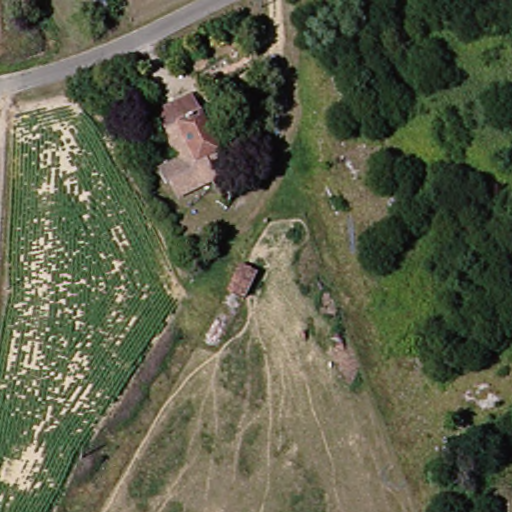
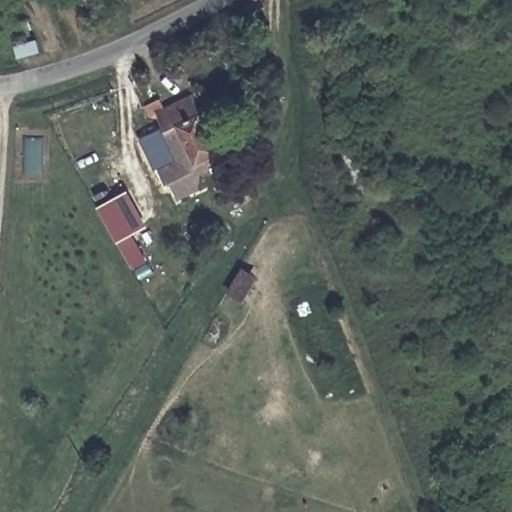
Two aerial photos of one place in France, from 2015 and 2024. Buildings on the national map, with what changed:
unchanged [(177,98),(207,165),(159,185),(130,117),(177,98)]
new [(149,225),(134,234),(149,261),(132,270),(99,207),(130,190),(149,225)]

